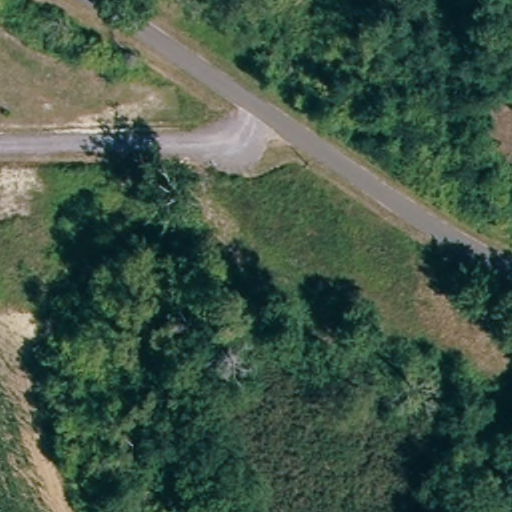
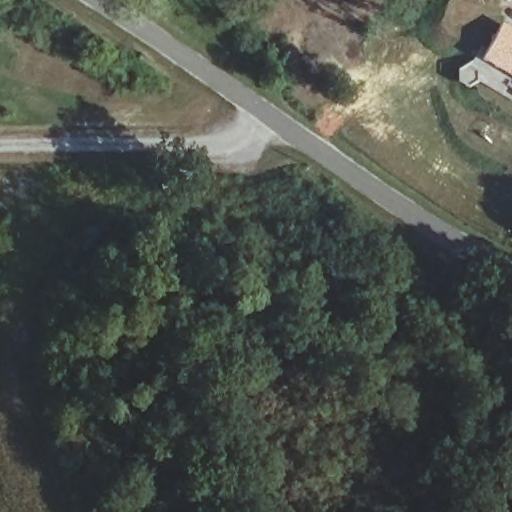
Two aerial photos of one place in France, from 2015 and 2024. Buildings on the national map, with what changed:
new [(507,3),(503,0),(510,0),(507,3)]
new [(499,23),(512,31),(512,80),(478,61),(499,23)]

